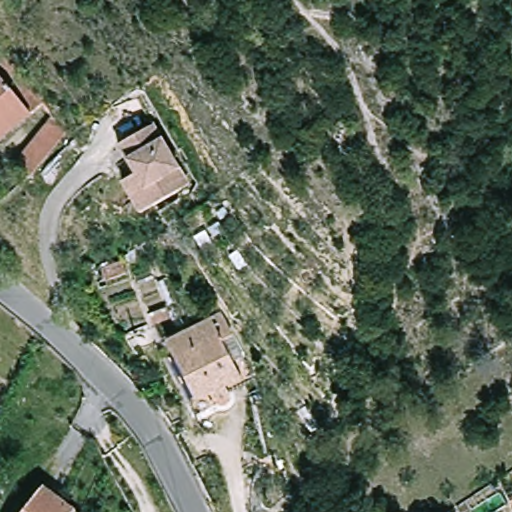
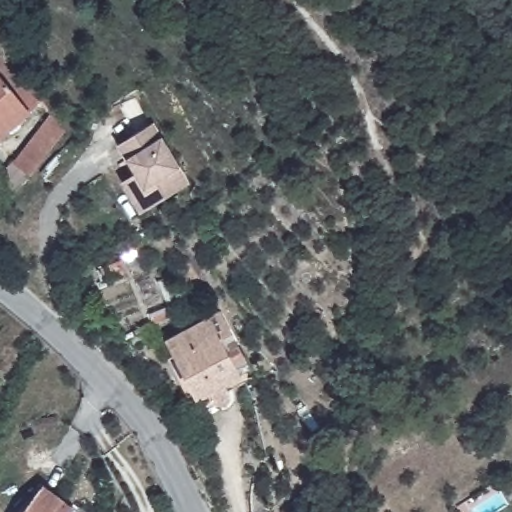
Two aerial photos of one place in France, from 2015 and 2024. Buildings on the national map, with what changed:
unchanged [(0,137),(0,62),(40,104),(0,137)]
unchanged [(16,162),(55,114),(70,125),(30,174),(16,162)]
unchanged [(126,183),(138,174),(120,146),(153,124),(193,181),(160,204),(147,213),(126,183)]
unchanged [(125,275),(103,284),(98,269),(120,260),(125,275)]
unchanged [(148,315),(165,308),(171,319),(153,328),(148,315)]
unchanged [(178,352),(171,337),(223,311),(256,377),(231,389),(233,394),(234,397),(233,399),(232,400),(230,401),(228,402),(226,401),(225,401),(223,399),(200,411),(193,397),(171,356),(178,352)]
unchanged [(41,483),(73,507),(80,512),(20,512),(41,483)]

